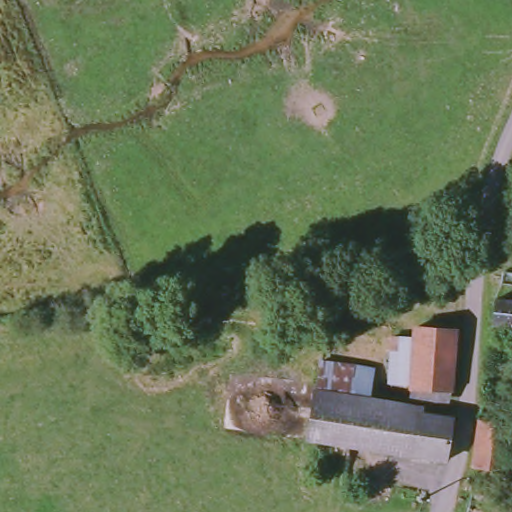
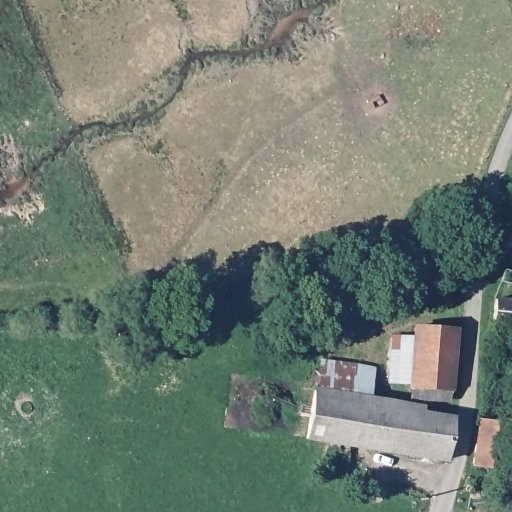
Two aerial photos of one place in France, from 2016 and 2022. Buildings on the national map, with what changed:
unchanged [(499,325),(503,298),(512,299),(512,327),(499,325)]
unchanged [(453,391),(410,387),(417,327),(458,331),(453,391)]
unchanged [(369,397),(316,388),(319,358),(373,368),(369,397)]
unchanged [(452,459),(364,445),(309,437),(316,388),(369,397),(418,406),(417,413),(452,419),(452,459)]
unchanged [(508,474),(480,472),(484,429),(512,432),(508,474)]

